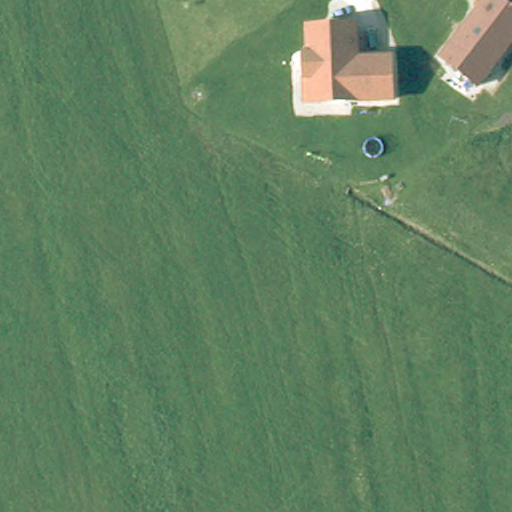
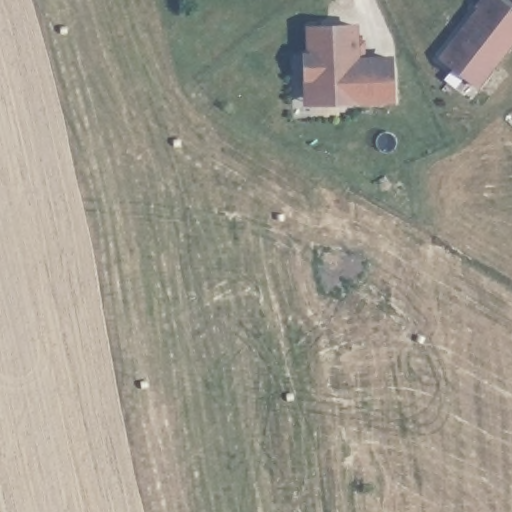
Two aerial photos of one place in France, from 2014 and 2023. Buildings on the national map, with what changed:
unchanged [(482,0),(502,0),(512,8),(512,41),(477,85),(440,57),(454,40),(460,32),(479,8),(477,6),(482,0)]
unchanged [(307,77),(305,53),(310,53),(308,26),(355,24),(355,41),(362,41),(363,58),(391,57),(393,98),(337,101),(307,102),(307,77)]

